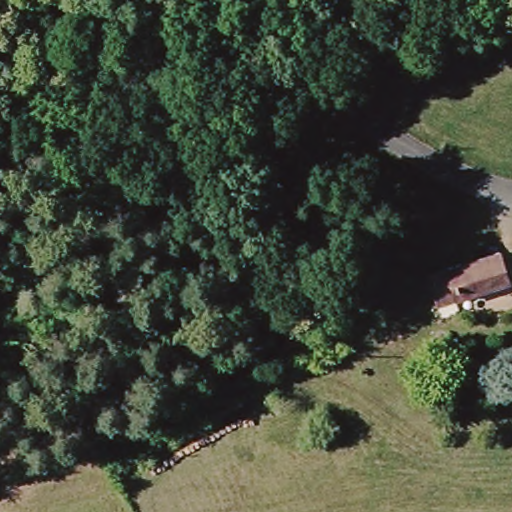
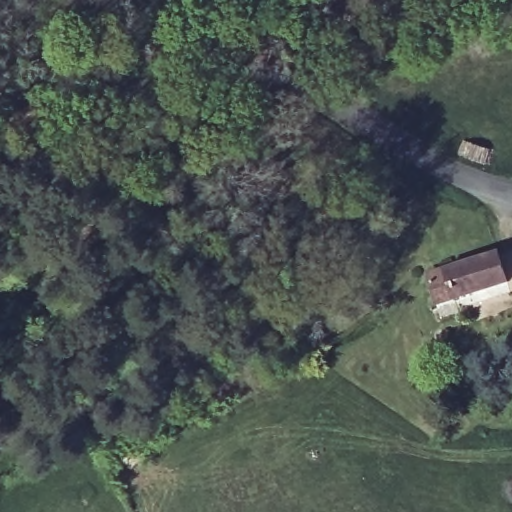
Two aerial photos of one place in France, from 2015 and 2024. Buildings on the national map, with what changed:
unchanged [(429,275),(451,260),(496,250),(506,283),(461,296),(439,302),(429,275)]

